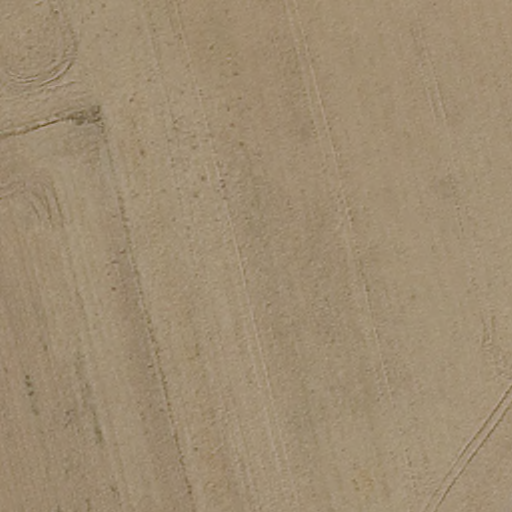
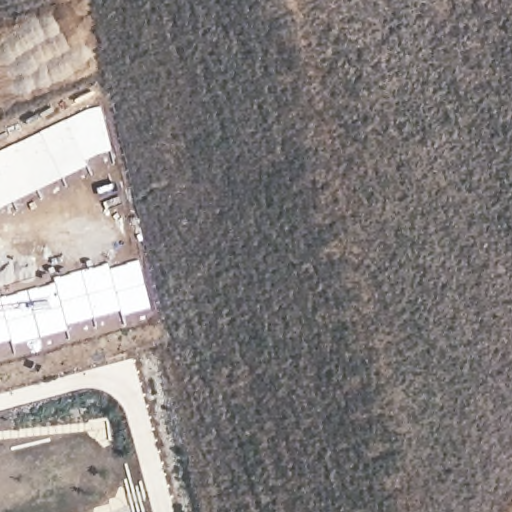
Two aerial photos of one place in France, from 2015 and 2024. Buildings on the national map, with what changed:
new [(86,108),(100,104),(111,149),(96,153),(85,158),(88,164),(0,206),(0,150),(86,108)]
new [(55,282),(53,277),(109,261),(110,267),(138,259),(151,306),(122,315),(121,308),(64,324),(66,330),(12,344),(10,338),(0,341),(0,297),(55,282)]

